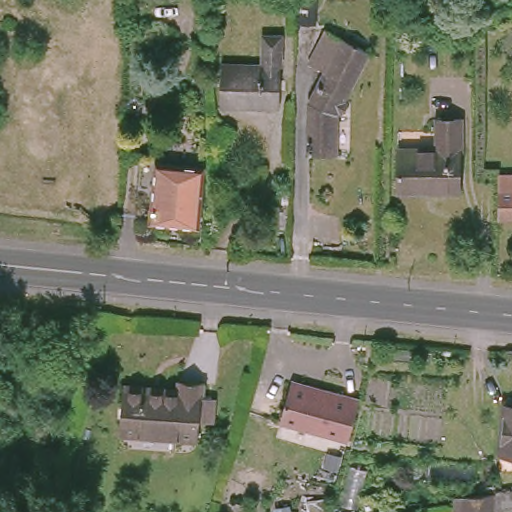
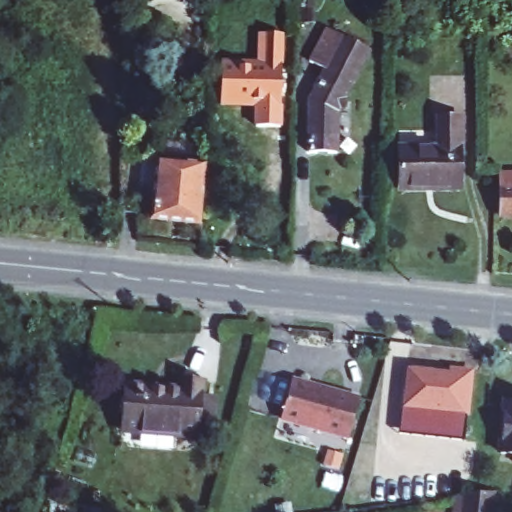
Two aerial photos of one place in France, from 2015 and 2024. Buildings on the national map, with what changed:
unchanged [(361,48),(336,97),(334,96),(331,102),(329,151),(303,150),(304,96),(319,67),(304,58),(321,26),(361,48)]
unchanged [(284,34),(281,107),(223,104),(225,62),(264,65),(265,32),(284,34)]
unchanged [(432,145),(431,115),(453,112),(457,184),(397,189),(393,147),(432,145)]
unchanged [(150,160),(151,157),(176,160),(209,163),(204,219),(144,212),(148,183),(150,160)]
unchanged [(512,171),(512,211),(499,211),(499,171),(512,171)]
new [(406,367),(447,373),(448,367),(475,371),(469,418),(466,417),(464,441),(398,434),(406,367)]
unchanged [(120,430),(124,386),(179,391),(179,381),(199,382),(198,395),(215,397),(213,421),(196,420),(193,437),(120,430)]
unchanged [(281,420),(291,382),(293,383),(296,382),(309,385),(311,388),(343,397),(343,395),(361,400),(349,440),(281,420)]
unchanged [(507,402),(512,402),(512,453),(502,452),(507,402)]
demolished [(512,469),(512,508),(496,511),(498,489),(499,471),(512,469)]
unchanged [(463,494),(479,492),(498,489),(496,511),(495,512),(454,512),(456,495),(463,494)]

